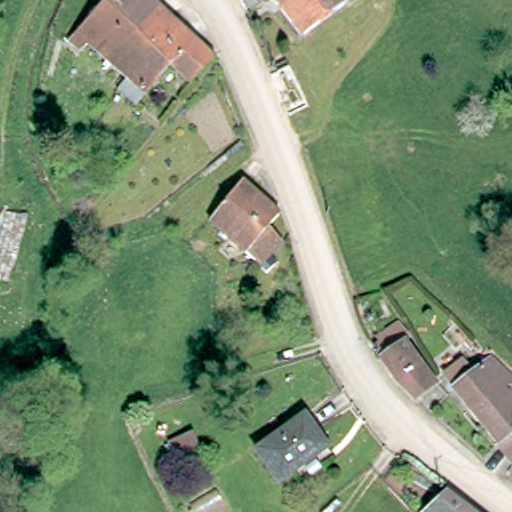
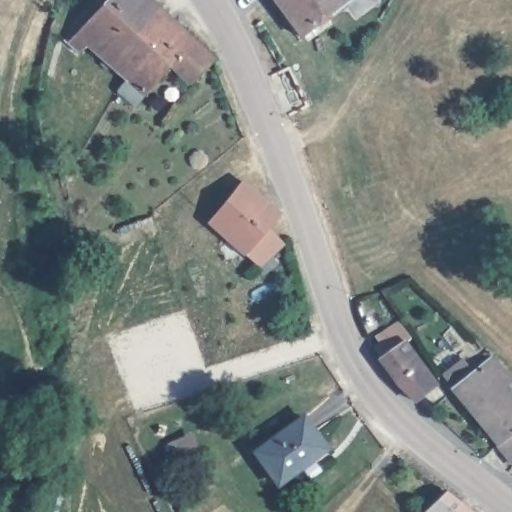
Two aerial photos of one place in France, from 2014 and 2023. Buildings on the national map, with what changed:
unchanged [(72,31),(98,1),(96,0),(145,0),(153,7),(106,61),(88,45),(81,39),(73,49),(63,40),(72,31)]
unchanged [(272,0),(343,0),(298,35),(272,0)]
unchanged [(124,77),(106,61),(153,7),(208,57),(186,82),(166,66),(163,70),(141,92),(131,105),(116,91),(124,77)]
unchanged [(259,264),(210,221),(246,182),(281,215),(267,228),(281,242),(259,264)]
unchanged [(398,386),(394,387),(376,360),(384,355),(374,340),(397,325),(407,338),(401,342),(420,370),(421,370),(436,388),(414,406),(398,386)]
unchanged [(491,359),(512,381),(512,413),(477,369),(491,359)]
unchanged [(477,369),(512,413),(484,433),(452,388),(453,387),(447,378),(444,374),(463,361),(466,365),(471,372),(477,369)]
unchanged [(512,414),(512,469),(512,470),(484,433),(512,413),(512,414)]
unchanged [(299,415),(324,447),(276,483),(252,451),(299,415)]
unchanged [(198,433),(204,448),(188,455),(183,440),(198,433)]
unchanged [(426,512),(448,488),(478,512),(426,512)]

